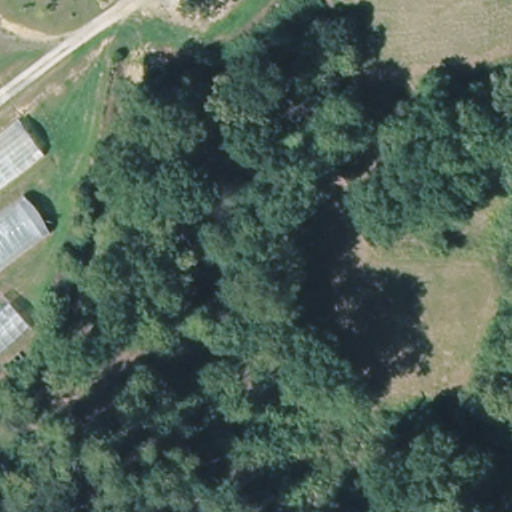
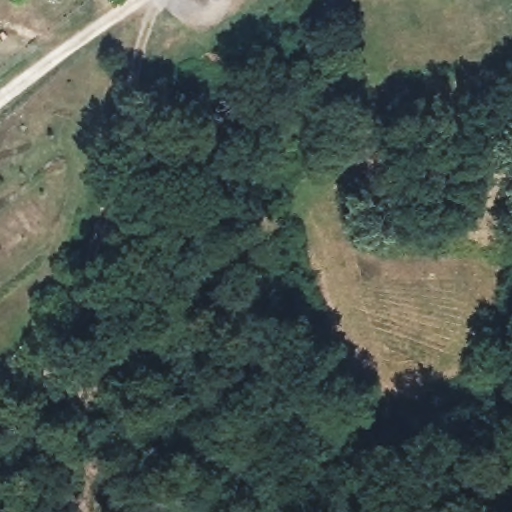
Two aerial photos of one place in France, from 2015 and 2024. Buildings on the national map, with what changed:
demolished [(25,120),(52,155),(0,193),(0,138),(25,120)]
demolished [(33,195),(60,230),(0,274),(0,219),(33,195)]
demolished [(28,312),(0,335),(0,312),(15,300),(28,312)]

